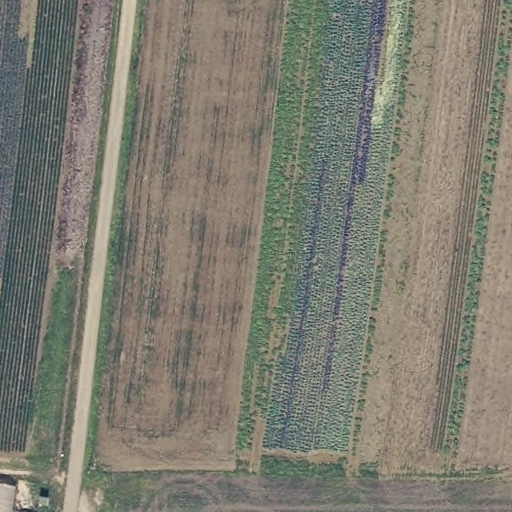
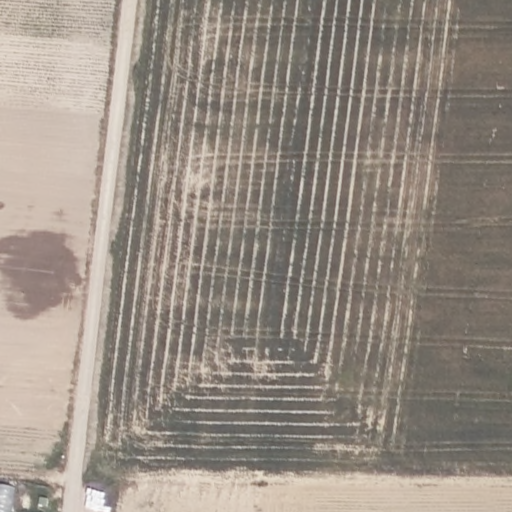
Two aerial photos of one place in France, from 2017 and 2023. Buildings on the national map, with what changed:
unchanged [(7,512),(0,512),(0,487),(11,490),(7,512)]

